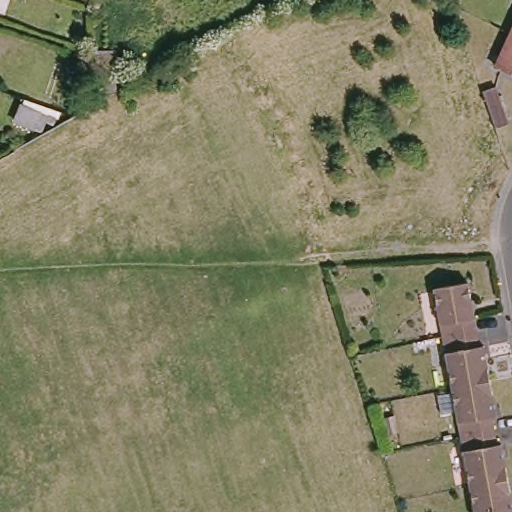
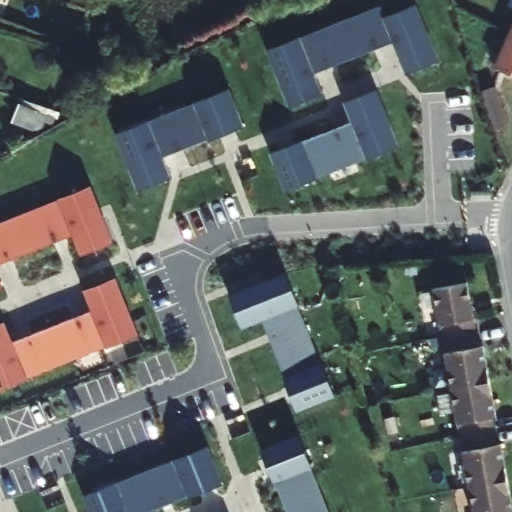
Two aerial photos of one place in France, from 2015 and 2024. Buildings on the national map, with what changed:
new [(382,6),(387,18),(416,6),(438,60),(407,72),(394,41),(314,74),(321,92),(290,105),(269,51),(382,6)]
unchanged [(509,35),(512,28),(512,36),(509,35)]
unchanged [(512,36),(512,76),(494,67),(484,63),(493,43),(503,47),(509,35),(512,36)]
unchanged [(482,89),(494,85),(507,120),(495,125),(482,89)]
new [(353,121),(345,101),(376,89),(398,145),(286,191),(271,154),(353,121)]
new [(229,90),(243,125),(163,157),(170,176),(138,189),(117,135),(229,90)]
new [(113,241),(81,254),(73,235),(0,264),(0,223),(91,187),(113,241)]
new [(285,274),(334,396),(299,410),(263,319),(243,326),(231,295),(285,274)]
new [(13,342),(93,311),(85,292),(116,280),(138,333),(0,388),(0,325),(5,323),(13,342)]
new [(0,286),(0,283),(1,286),(0,286)]
unchanged [(466,287),(473,326),(478,351),(482,350),(489,387),(496,421),(491,422),(496,446),(497,450),(501,448),(512,508),(512,512),(474,512),(463,453),(451,393),(439,332),(432,293),(466,287)]
new [(298,435),(328,512),(288,512),(263,450),(298,435)]
new [(208,448),(221,483),(148,512),(91,512),(85,497),(208,448)]

